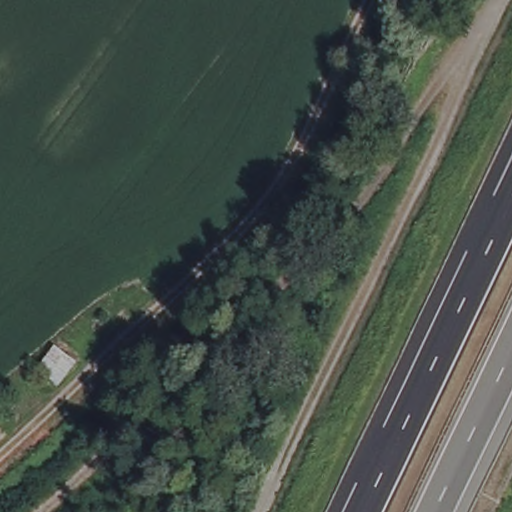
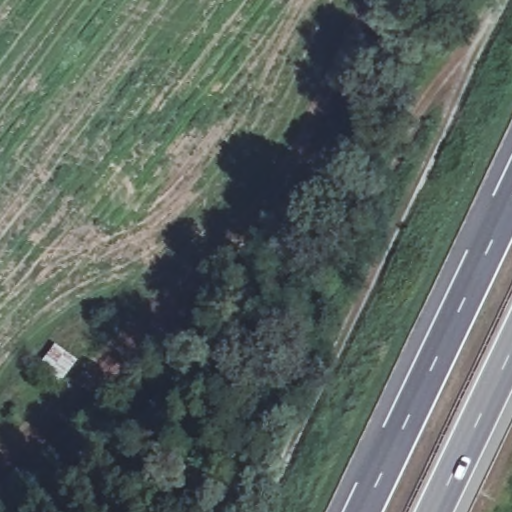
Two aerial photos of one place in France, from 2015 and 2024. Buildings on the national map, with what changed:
unchanged [(78,361),(57,388),(37,371),(55,346),(78,361)]

